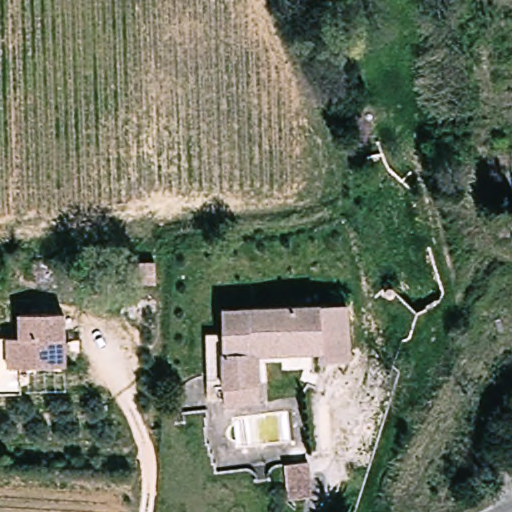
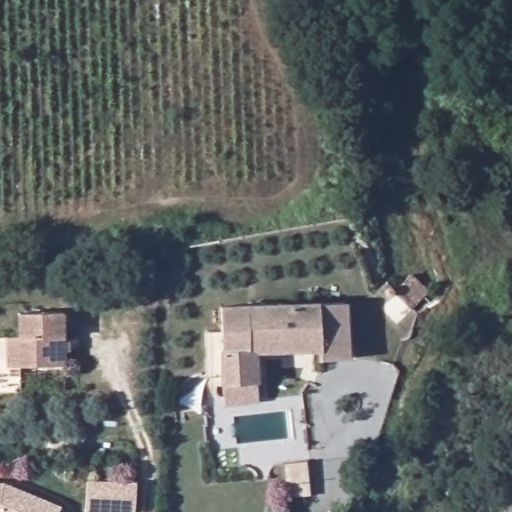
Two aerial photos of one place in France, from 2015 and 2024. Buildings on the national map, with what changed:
new [(129,262),(156,262),(155,282),(128,282),(129,262)]
unchanged [(222,307),(349,307),(349,346),(325,345),(324,352),(261,355),(260,387),(223,388),(222,307)]
unchanged [(9,347),(26,347),(26,308),(65,309),(65,373),(26,372),(9,372),(9,347)]
new [(92,512),(82,512),(84,482),(114,483),(134,485),(132,512),(92,512)]
new [(6,483),(14,487),(64,507),(61,512),(0,512),(0,483),(6,483)]

